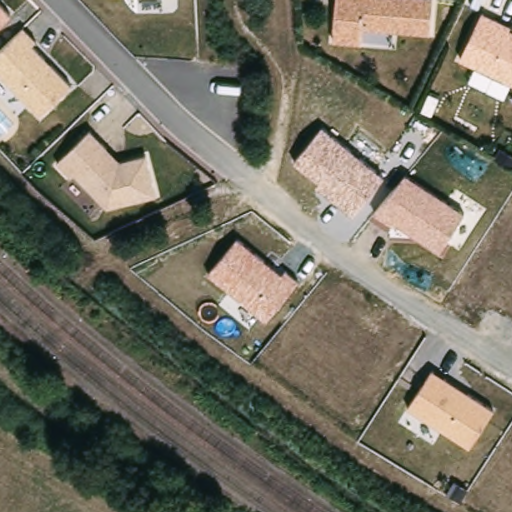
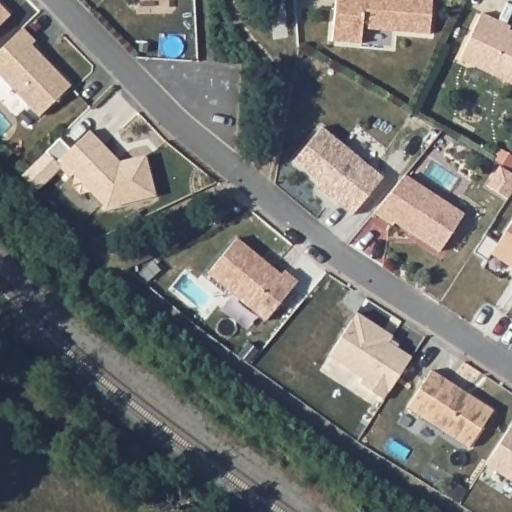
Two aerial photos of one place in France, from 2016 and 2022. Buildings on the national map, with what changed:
unchanged [(430,39),(393,34),(364,31),(362,46),(334,44),(338,0),(420,0),(434,1),(430,39)]
unchanged [(0,27),(0,5),(11,16),(0,27)]
unchanged [(510,35),(512,36),(512,89),(460,64),(482,18),(511,31),(510,35)]
unchanged [(21,27),(36,39),(32,43),(71,84),(37,116),(0,78),(0,48),(21,27)]
unchanged [(384,179),(353,217),(315,187),(318,183),(293,162),(322,128),(384,179)]
unchanged [(120,161),(145,154),(156,197),(105,209),(72,175),(68,179),(53,163),(89,130),(120,161)]
unchanged [(440,253),(395,223),(391,227),(373,214),(406,175),(464,214),(440,253)]
new [(487,259),(476,253),(487,234),(498,242),(512,220),(512,267),(491,254),(487,259)]
unchanged [(207,274),(237,239),(281,274),(285,269),(299,283),(266,321),(207,274)]
new [(392,336),(390,339),(398,344),(396,348),(410,357),(383,400),(359,384),(363,378),(328,356),(356,313),(392,336)]
unchanged [(494,412),(468,448),(408,408),(433,370),(494,412)]
new [(512,422),(512,484),(484,466),(512,422)]

